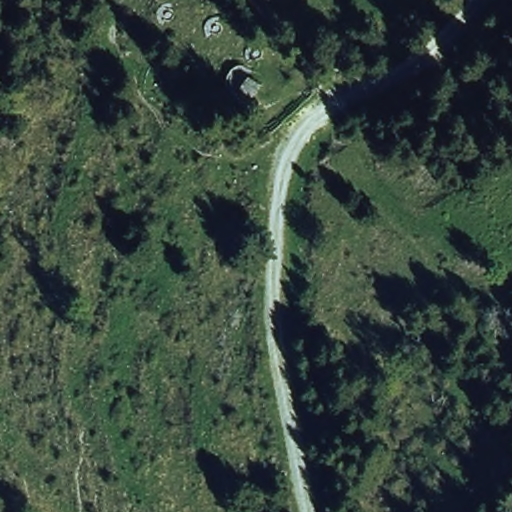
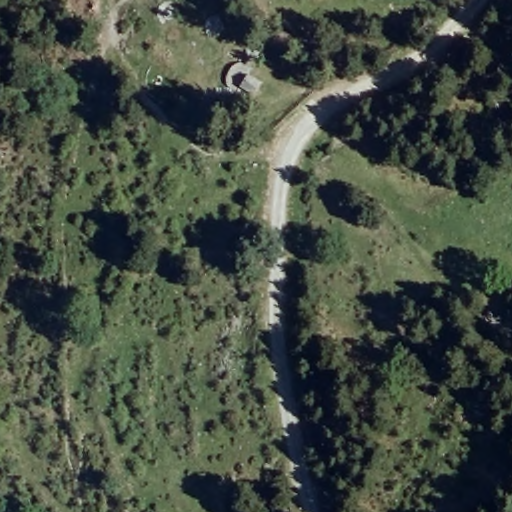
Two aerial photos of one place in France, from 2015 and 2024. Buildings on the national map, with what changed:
unchanged [(263,85),(255,99),(241,93),(246,78),(263,85)]

